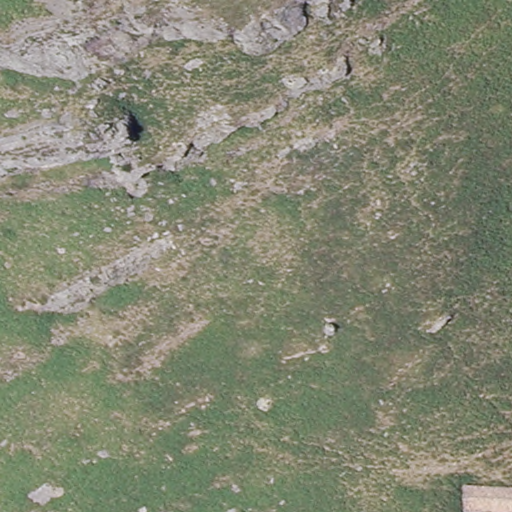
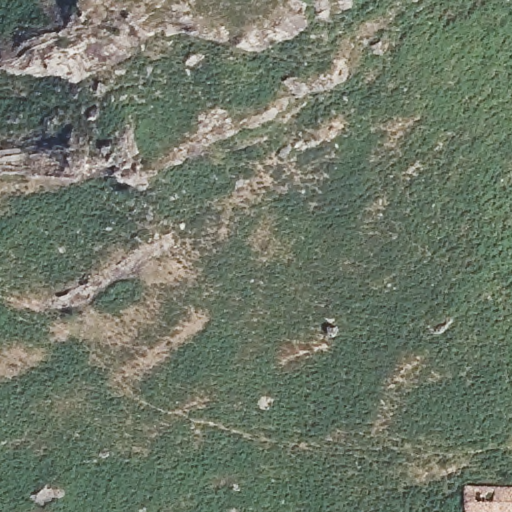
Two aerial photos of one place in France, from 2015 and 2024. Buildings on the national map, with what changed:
unchanged [(512,512),(465,512),(465,488),(512,488),(512,512)]

